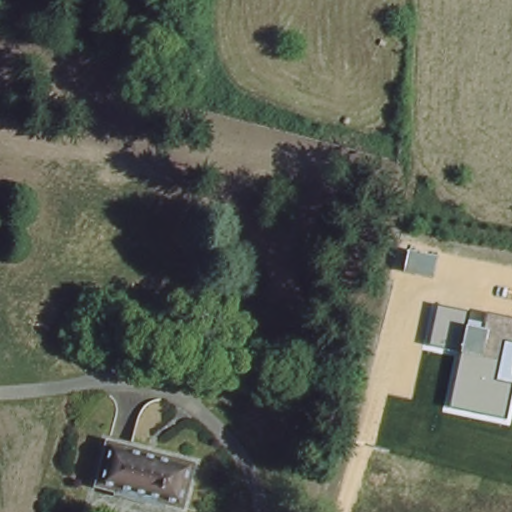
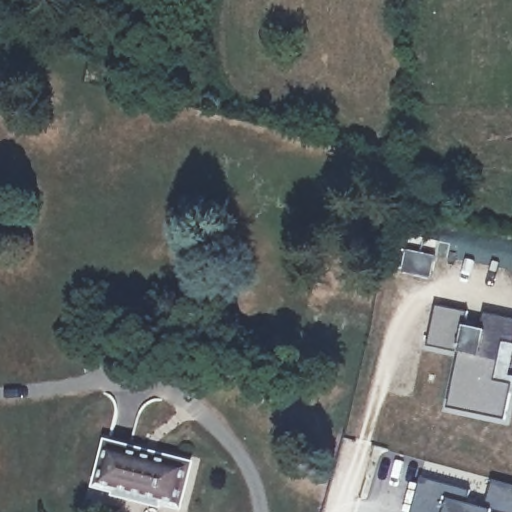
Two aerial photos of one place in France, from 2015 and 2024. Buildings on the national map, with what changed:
unchanged [(409,241),(439,247),(434,270),(405,263),(409,241)]
unchanged [(464,327),(481,330),(485,315),(512,320),(512,364),(510,374),(512,374),(512,396),(510,396),(504,420),(448,408),(459,351),(427,346),(435,307),(465,313),(464,327)]
unchanged [(117,495),(118,488),(97,482),(109,440),(192,461),(180,503),(158,498),(155,505),(117,495)]
new [(470,491),(466,502),(485,507),(493,481),(512,486),(512,512),(499,512),(491,510),(491,512),(411,512),(421,479),(470,491)]

